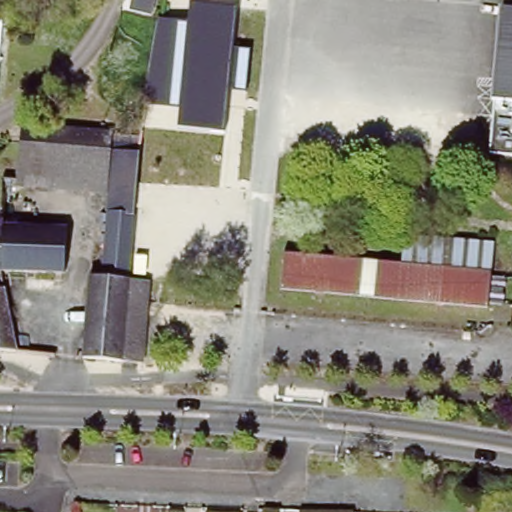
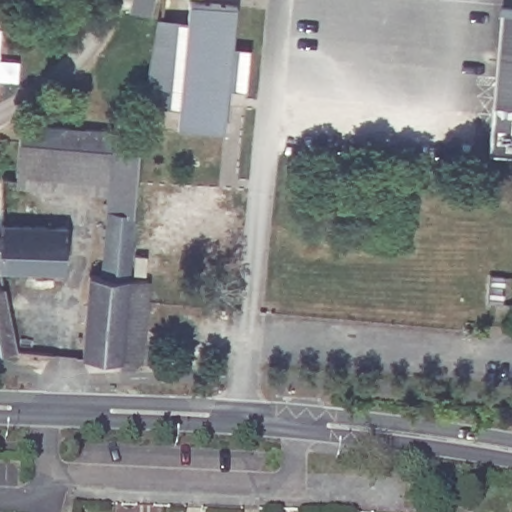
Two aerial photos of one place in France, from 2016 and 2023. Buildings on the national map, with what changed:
unchanged [(178,107),(143,104),(157,18),(188,21),(190,1),(237,7),(233,47),(250,49),(247,92),(228,90),(223,132),(177,127),(178,107)]
unchanged [(488,151),(492,97),(498,7),(512,9),(512,153),(488,151)]
unchanged [(110,135),(108,152),(15,143),(17,125),(110,135)]
unchanged [(108,152),(104,192),(12,181),(15,143),(108,152)]
unchanged [(105,214),(102,213),(104,192),(108,152),(137,155),(127,281),(128,281),(127,282),(97,278),(105,214)]
unchanged [(60,278),(0,275),(0,227),(64,230),(60,278)]
demolished [(360,263),(357,297),(279,290),(281,256),(360,263)]
demolished [(483,311),(368,299),(372,265),(400,268),(486,277),(483,311)]
unchanged [(97,278),(127,282),(128,281),(145,282),(137,365),(75,360),(85,277),(97,278)]
unchanged [(13,356),(0,355),(0,289),(2,289),(13,356)]

